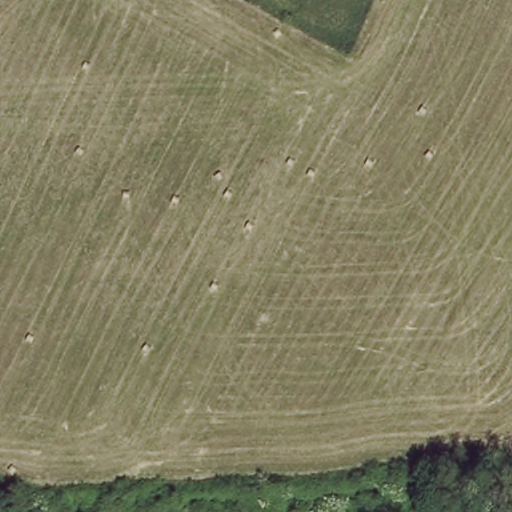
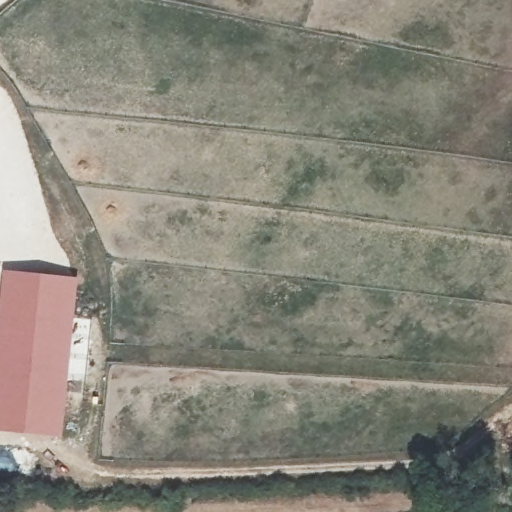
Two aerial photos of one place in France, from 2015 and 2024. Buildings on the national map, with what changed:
new [(75,317),(91,318),(83,382),(69,382),(63,437),(0,431),(0,280),(1,269),(79,277),(75,317)]

